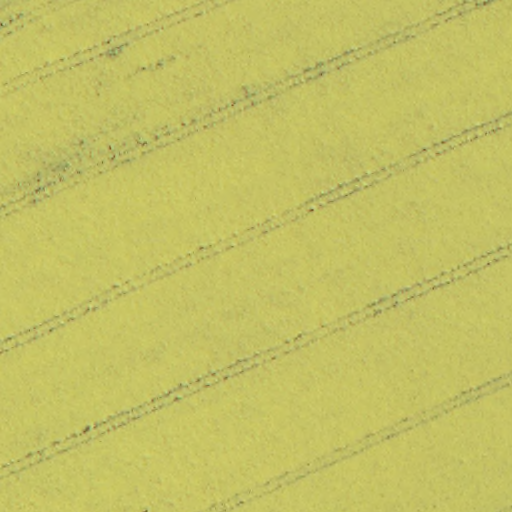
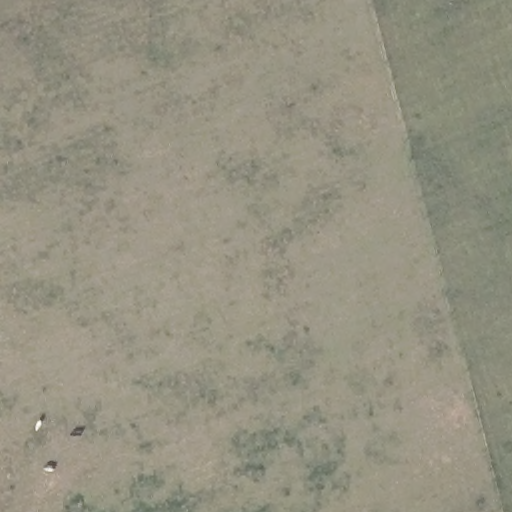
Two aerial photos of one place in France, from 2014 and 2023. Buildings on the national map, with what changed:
[]

